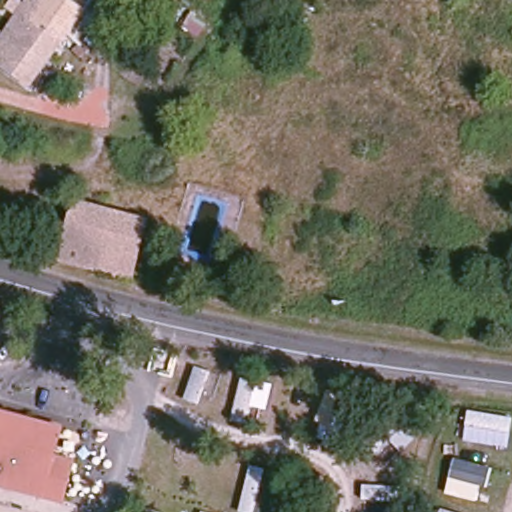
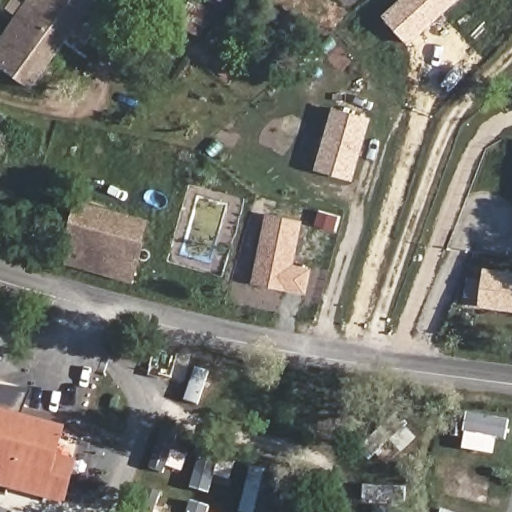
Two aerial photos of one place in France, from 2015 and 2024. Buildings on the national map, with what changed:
unchanged [(0,66),(0,40),(27,0),(89,0),(29,84),(0,66)]
new [(383,16),(401,0),(459,0),(409,45),(383,16)]
new [(336,108),(374,119),(357,182),(316,171),(336,108)]
unchanged [(59,255),(75,199),(82,200),(153,220),(137,278),(59,255)]
new [(305,221),(297,266),(314,270),(309,295),(254,283),(267,213),(305,221)]
new [(512,313),(480,308),(485,270),(512,273),(512,313)]
unchanged [(58,454),(78,460),(67,505),(0,488),(0,409),(66,427),(58,454)]

